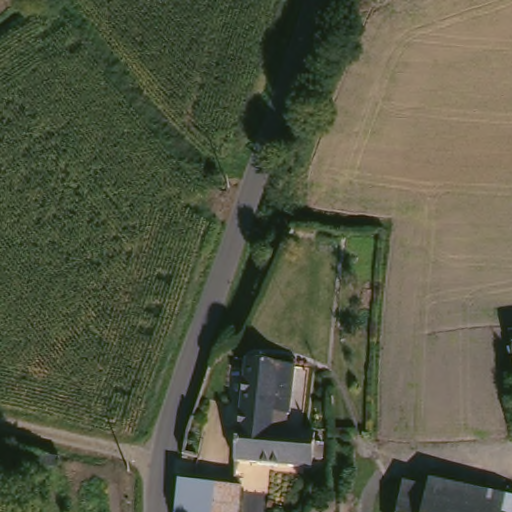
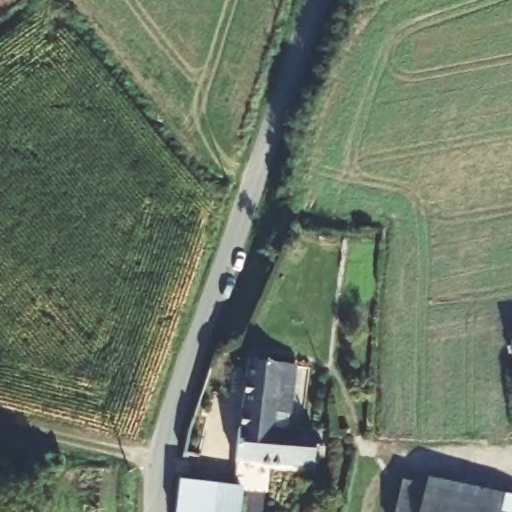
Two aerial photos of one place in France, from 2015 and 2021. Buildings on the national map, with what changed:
unchanged [(510,337),(512,336),(512,344),(510,337)]
unchanged [(293,365),(288,412),(273,411),(270,430),(239,427),(247,359),(293,365)]
unchanged [(310,466),(261,462),(235,459),(239,427),(270,430),(285,432),(315,434),(310,466)]
unchanged [(179,484),(230,490),(241,491),(238,512),(177,512),(179,484)]
unchanged [(393,508),(395,492),(424,496),(426,489),(497,501),(495,512),(397,512),(398,509),(393,508)]
unchanged [(512,503),(512,512),(495,512),(497,501),(512,503)]

